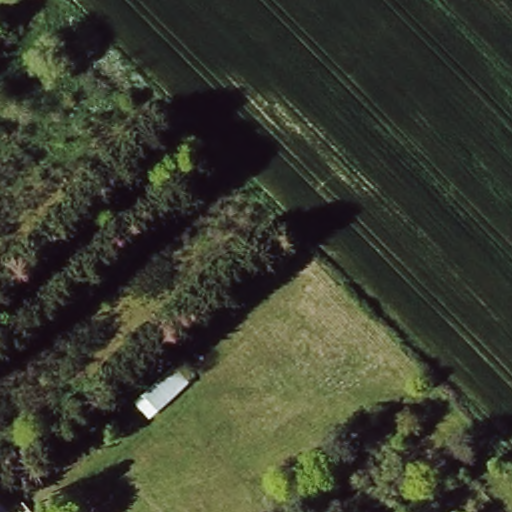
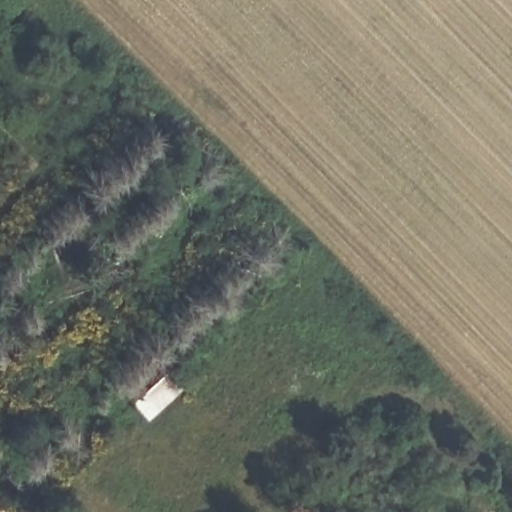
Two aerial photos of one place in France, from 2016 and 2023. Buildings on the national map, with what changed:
[]

